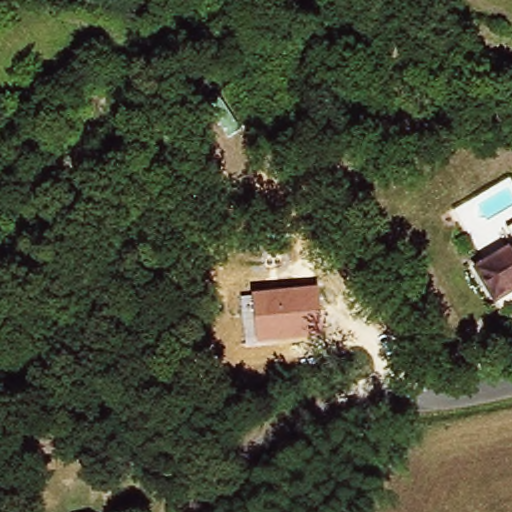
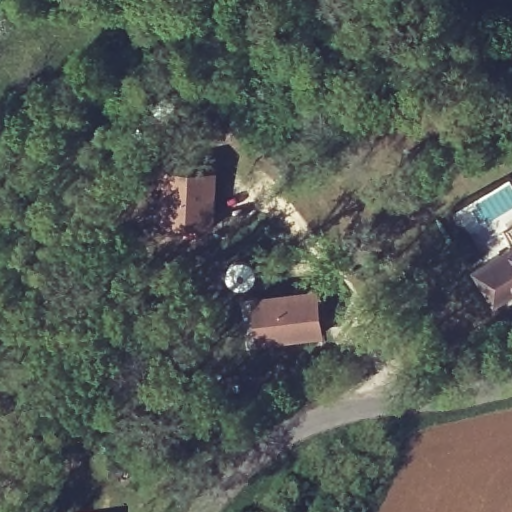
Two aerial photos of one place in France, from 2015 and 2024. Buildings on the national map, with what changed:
new [(163,196),(164,170),(212,172),(212,229),(162,228),(162,235),(147,235),(148,196),(163,196)]
unchanged [(507,232),(512,230),(512,244),(507,232)]
unchanged [(472,269),(512,249),(512,293),(490,304),(472,269)]
unchanged [(318,288),(322,336),(245,344),(240,296),(318,288)]

